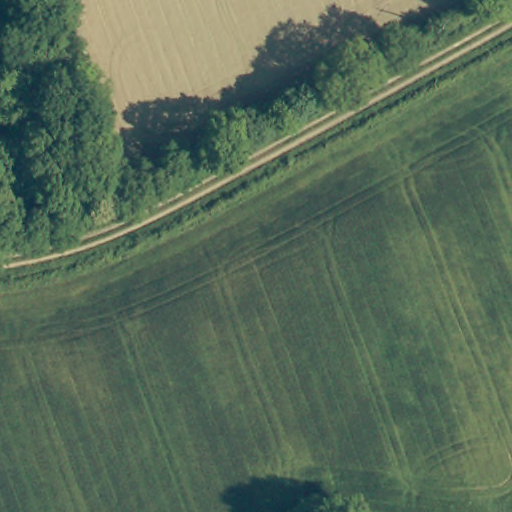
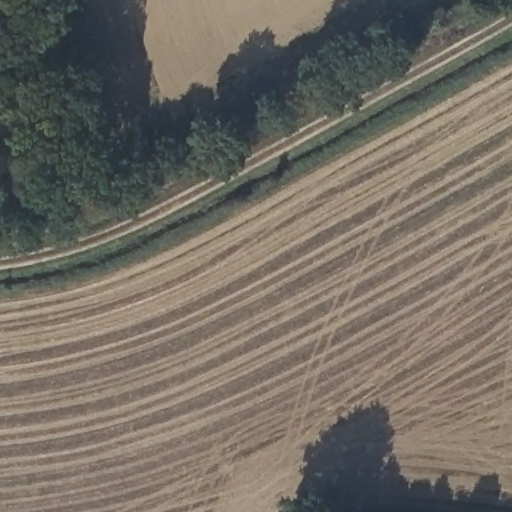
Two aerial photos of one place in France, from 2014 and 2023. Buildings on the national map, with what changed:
[]

